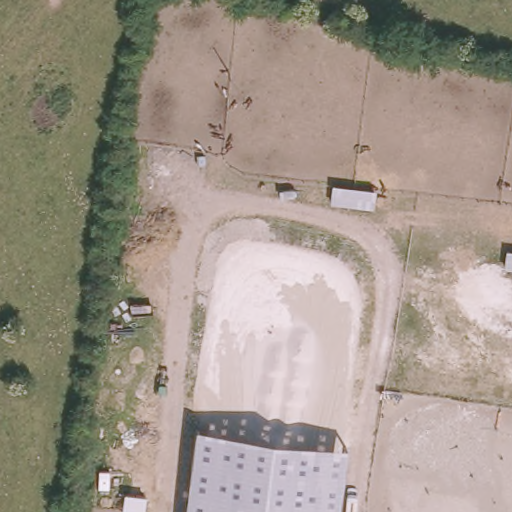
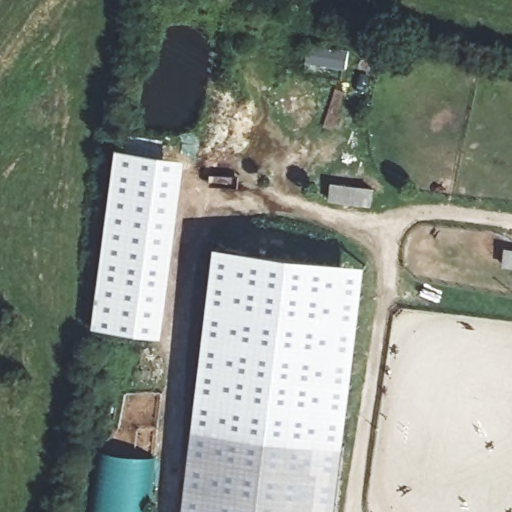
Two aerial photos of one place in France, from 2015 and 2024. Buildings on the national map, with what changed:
new [(164,337),(94,327),(117,146),(189,159),(164,337)]
new [(332,184),(371,189),(370,205),(330,200),(332,184)]
new [(197,426),(217,245),(368,263),(345,444),(197,426)]
new [(512,250),(512,267),(504,265),(506,249),(512,250)]
unchanged [(345,444),(337,512),(185,512),(197,426),(345,444)]
new [(149,512),(91,512),(99,450),(157,457),(149,512)]

